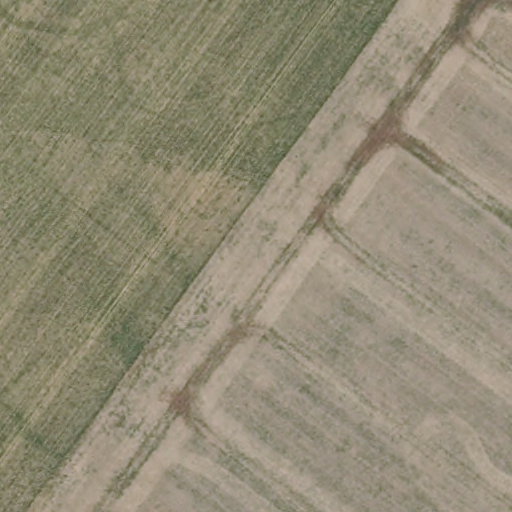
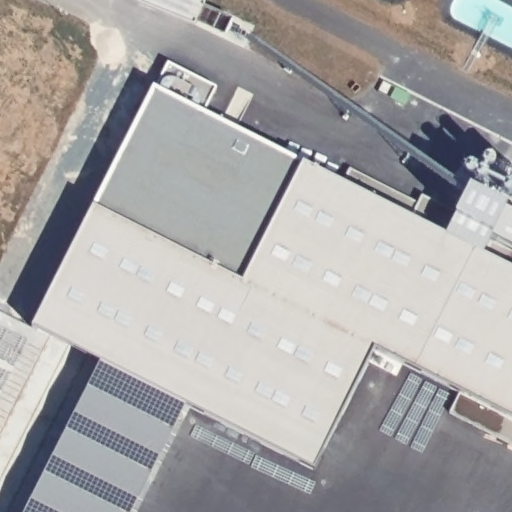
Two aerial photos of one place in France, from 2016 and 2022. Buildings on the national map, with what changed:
new [(202,116),(185,153),(241,185),(263,147),(512,271),(512,416),(386,353),(324,476),(194,411),(108,367),(38,332),(157,93),(202,116)]
new [(194,411),(145,512),(38,512),(108,367),(194,411)]

